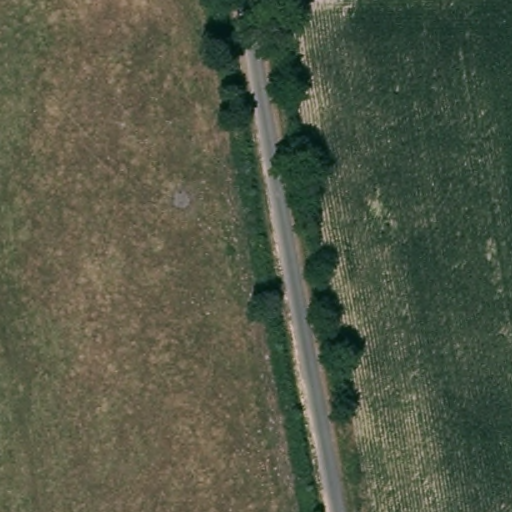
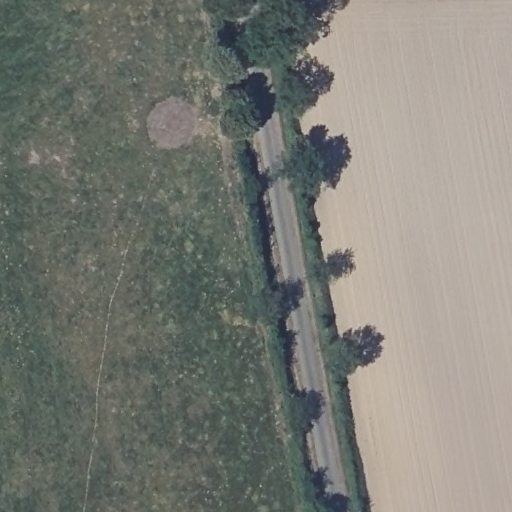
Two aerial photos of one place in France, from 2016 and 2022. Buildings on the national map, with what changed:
[]

